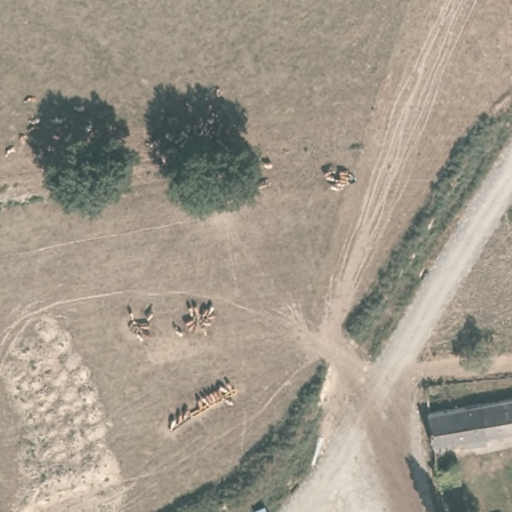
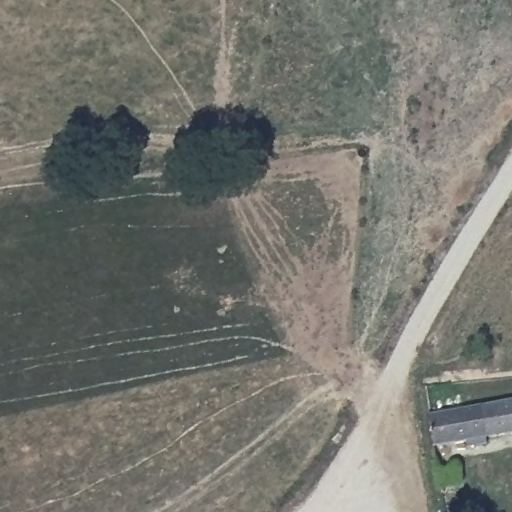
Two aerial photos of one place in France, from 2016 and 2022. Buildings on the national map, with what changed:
unchanged [(428,420),(491,408),(512,404),(512,436),(433,452),(428,420)]

